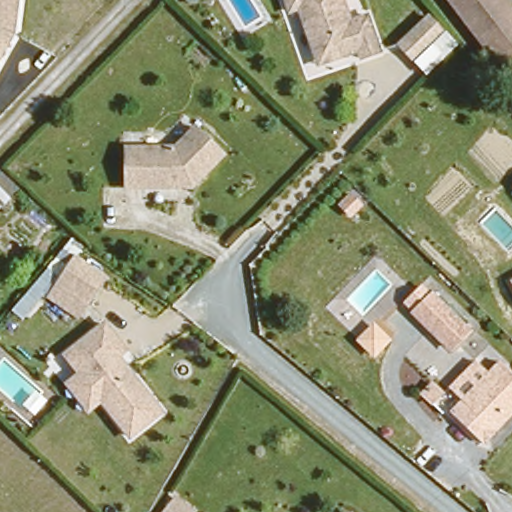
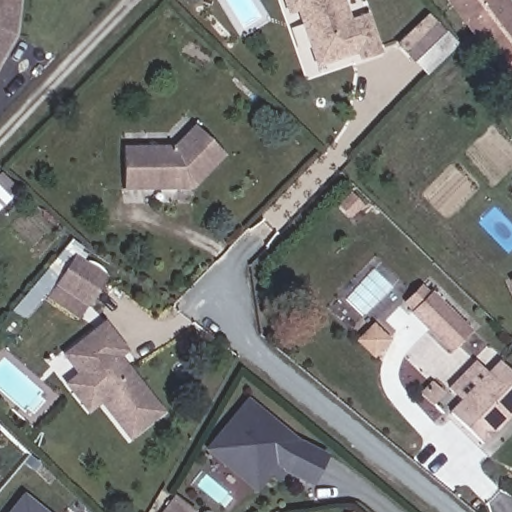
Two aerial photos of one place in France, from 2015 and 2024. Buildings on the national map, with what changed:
unchanged [(13,13),(12,25),(0,51),(0,0),(15,0),(13,13)]
unchanged [(309,52),(293,11),(284,15),(278,0),(336,0),(345,24),(362,16),(376,52),(357,59),(353,46),(344,50),(341,56),(329,61),(315,67),(309,52)]
unchanged [(512,8),(512,56),(502,63),(456,0),(506,0),(512,8)]
unchanged [(410,59),(395,45),(424,16),(438,31),(410,59)]
unchanged [(213,164),(182,195),(118,195),(117,150),(165,154),(186,134),(213,164)]
unchanged [(82,308),(54,287),(72,263),(100,283),(82,308)]
unchanged [(512,276),(511,275),(512,275),(512,276)]
unchanged [(428,291),(465,326),(447,345),(410,310),(428,291)]
unchanged [(65,391),(77,381),(62,365),(97,330),(107,341),(115,350),(107,356),(154,411),(123,437),(96,405),(85,415),(65,391)]
unchanged [(451,411),(463,398),(450,386),(477,359),(490,371),(502,360),(512,370),(512,413),(483,442),(451,411)]
unchanged [(438,376),(441,380),(431,390),(428,386),(422,381),(432,371),(438,376)]
new [(277,482),(270,475),(255,492),(204,449),(247,397),(300,440),(329,453),(311,486),(285,473),(277,482)]
unchanged [(169,512),(161,506),(176,485),(194,498),(184,512),(169,512)]
new [(41,512),(12,512),(23,498),(41,512)]

